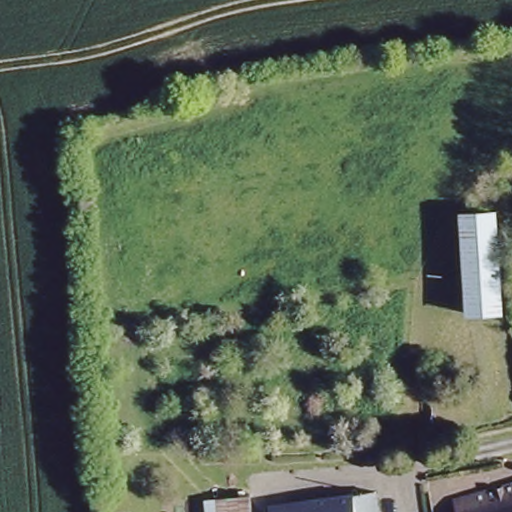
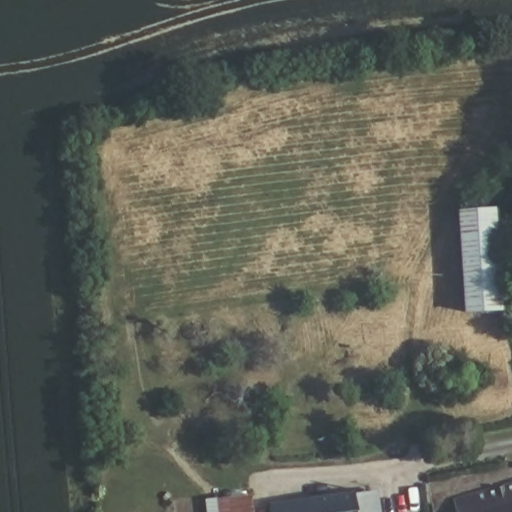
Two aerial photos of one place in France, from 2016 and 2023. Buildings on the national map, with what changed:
unchanged [(461,215),(497,210),(504,308),(469,311),(461,215)]
unchanged [(512,483),(512,512),(453,512),(450,501),(512,483)]
unchanged [(381,512),(272,512),(272,507),(379,492),(381,512)]
unchanged [(250,512),(205,512),(204,497),(249,493),(250,512)]

